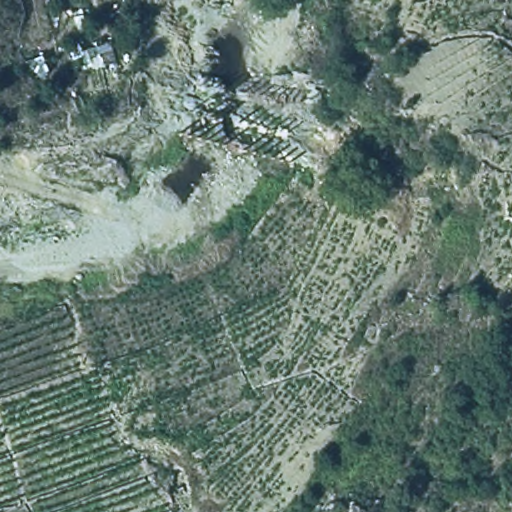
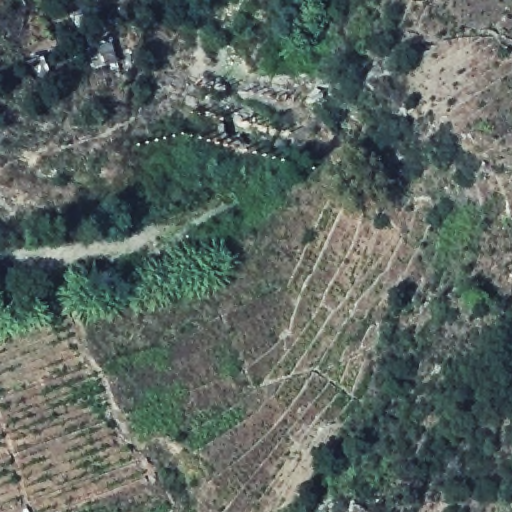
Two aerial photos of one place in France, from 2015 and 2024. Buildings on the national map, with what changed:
unchanged [(116,36),(119,64),(96,66),(93,40),(116,36)]

